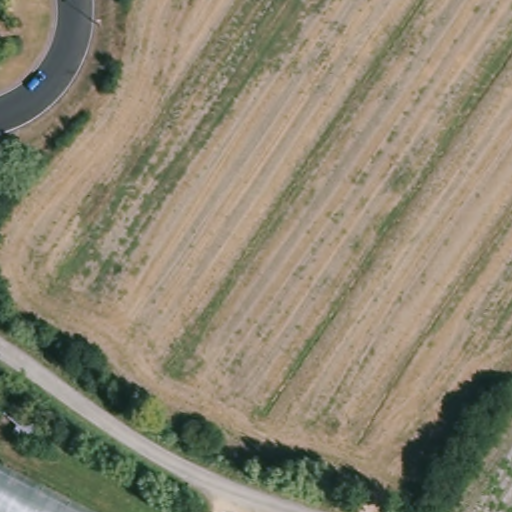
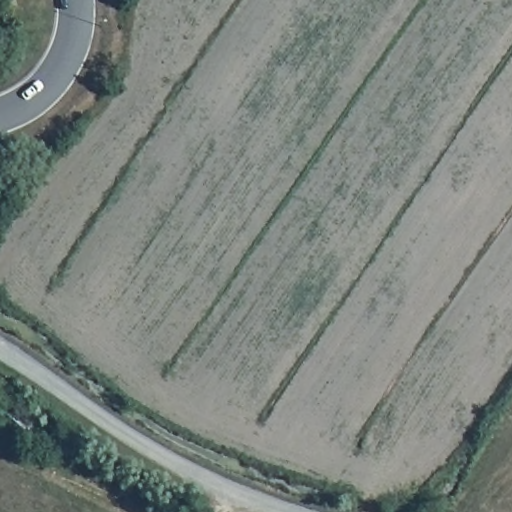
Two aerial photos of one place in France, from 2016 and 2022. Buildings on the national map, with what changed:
unchanged [(17,429),(0,416),(0,407),(4,403),(25,419),(17,429)]
demolished [(0,468),(83,512),(0,512),(0,468)]

